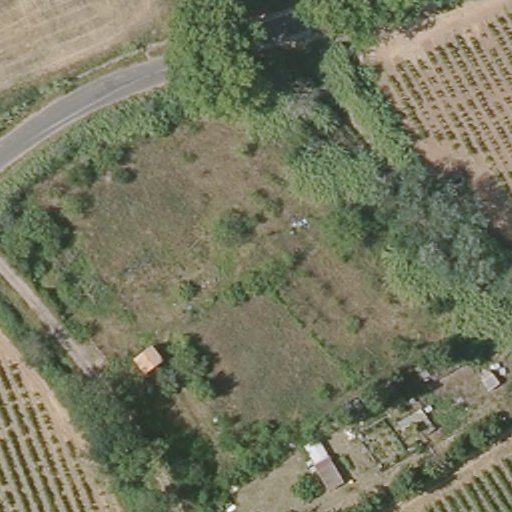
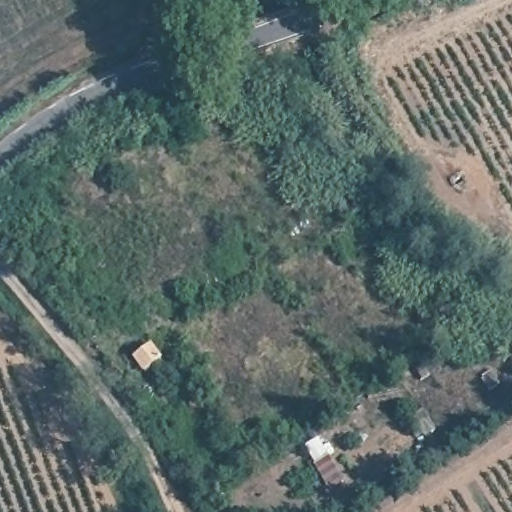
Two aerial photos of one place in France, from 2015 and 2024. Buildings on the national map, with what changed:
unchanged [(385,211),(367,225),(350,204),(367,190),(385,211)]
unchanged [(153,346),(160,360),(143,370),(134,359),(153,346)]

